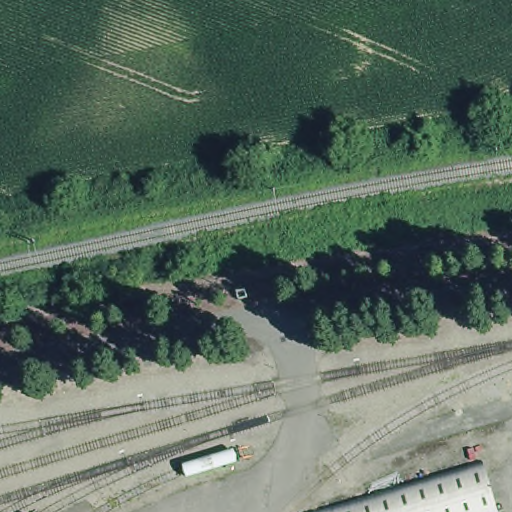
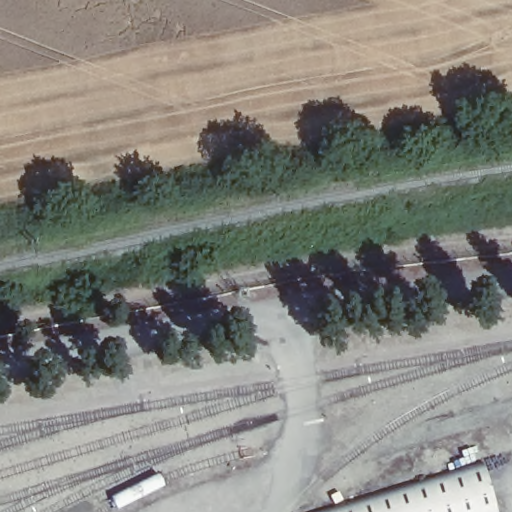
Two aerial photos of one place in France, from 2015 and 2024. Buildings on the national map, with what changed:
unchanged [(487,473),(499,512),(352,512),(487,473)]

